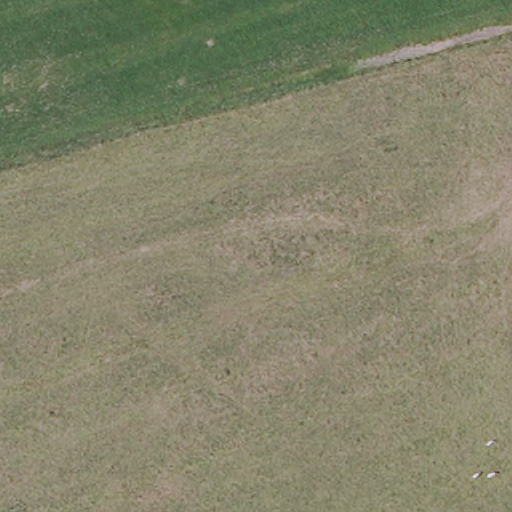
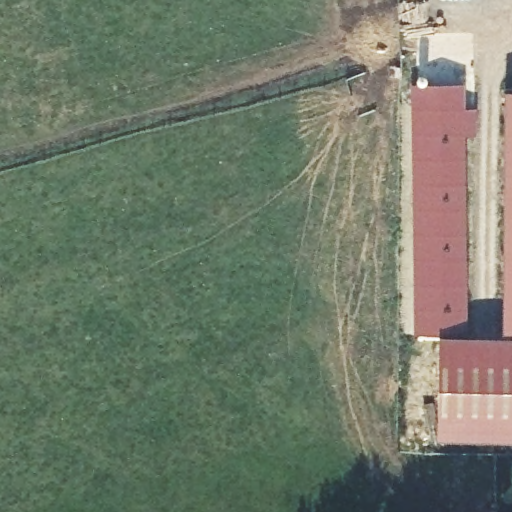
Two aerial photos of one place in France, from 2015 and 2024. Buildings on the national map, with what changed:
new [(467,104),(478,104),(476,134),(466,133),(467,331),(512,332),(512,436),(439,435),(441,331),(415,332),(412,81),(466,81),(467,104)]

